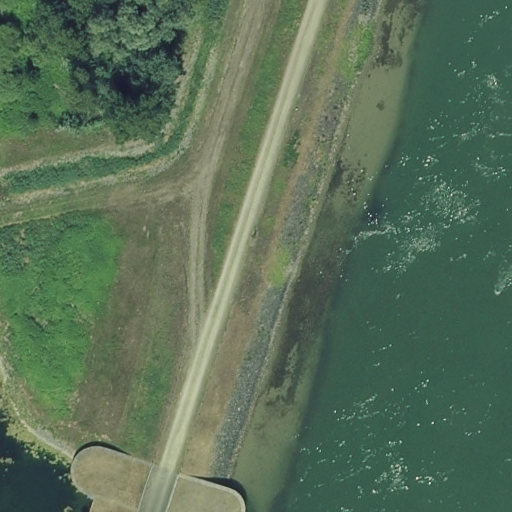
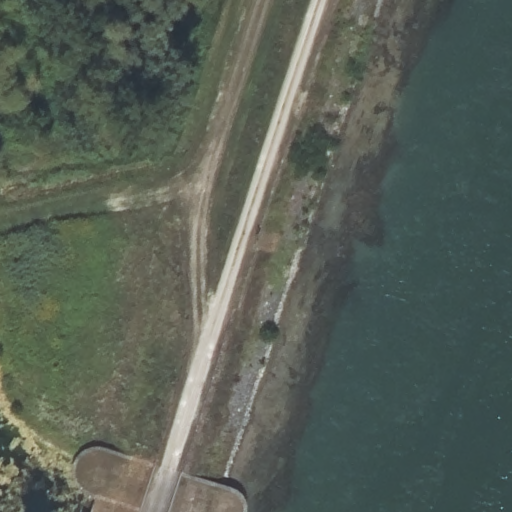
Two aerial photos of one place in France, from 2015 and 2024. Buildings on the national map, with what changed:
unchanged [(134,512),(88,512),(93,493),(81,487),(76,477),(78,462),(88,449),(107,447),(150,462),(134,512)]
unchanged [(187,472),(225,484),(231,489),(236,501),(233,512),(175,512),(187,472)]

